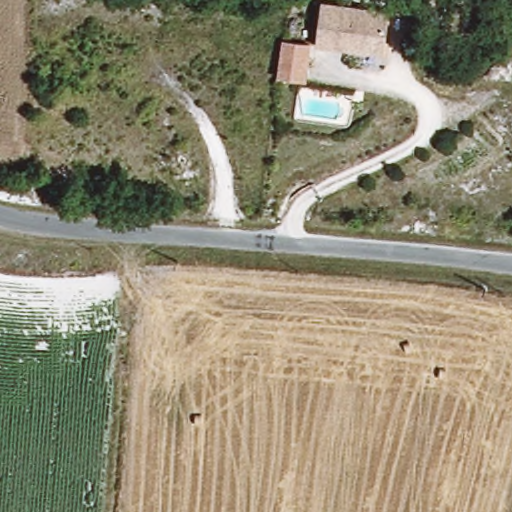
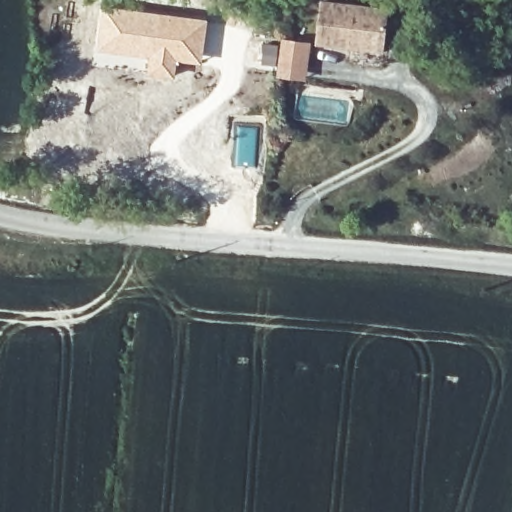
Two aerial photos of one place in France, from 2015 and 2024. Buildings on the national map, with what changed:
unchanged [(344,56),(345,41),(311,37),(316,0),(362,0),(385,3),(380,46),(377,60),(344,56)]
new [(101,5),(209,19),(202,65),(179,62),(176,80),(147,75),(147,71),(128,68),(129,63),(116,61),(117,54),(109,53),(109,57),(95,55),(101,5)]
new [(262,42),(279,43),(280,38),(312,42),(306,81),(276,78),(277,66),(261,65),(262,42)]

